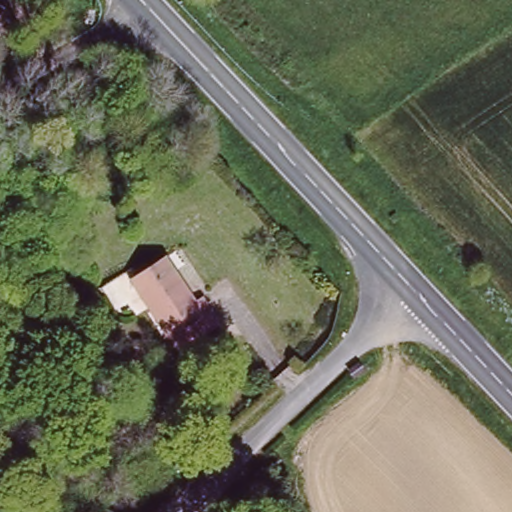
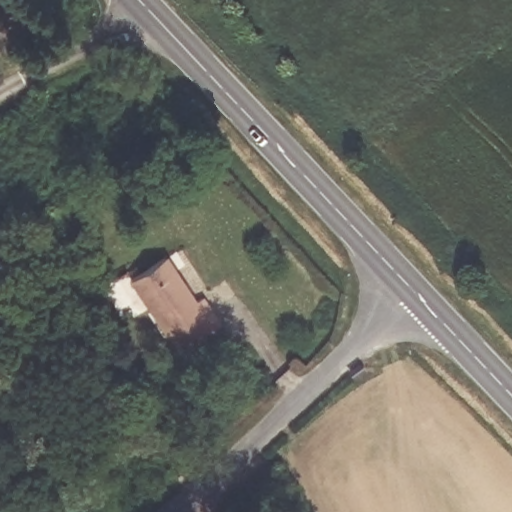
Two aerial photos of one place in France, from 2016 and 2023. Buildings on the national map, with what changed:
unchanged [(196,321),(173,339),(125,272),(156,250),(184,291),(201,282),(213,311),(196,321)]
unchanged [(206,351),(217,365),(192,383),(183,369),(206,351)]

